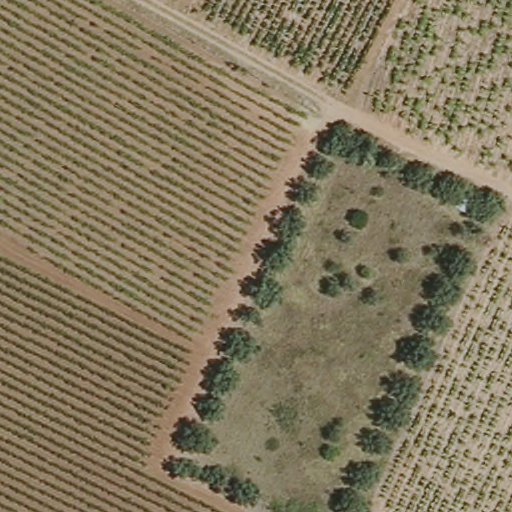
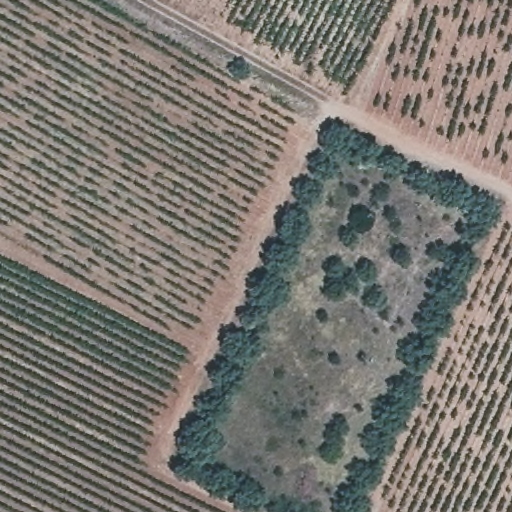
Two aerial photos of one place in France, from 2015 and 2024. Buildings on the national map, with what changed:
unchanged [(466,219),(448,209),(456,190),(472,197),(466,219)]

